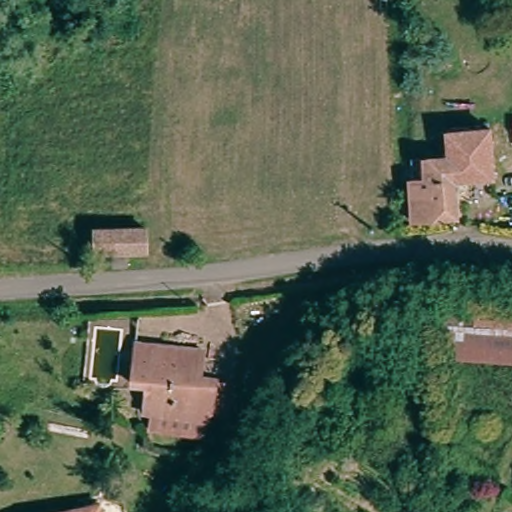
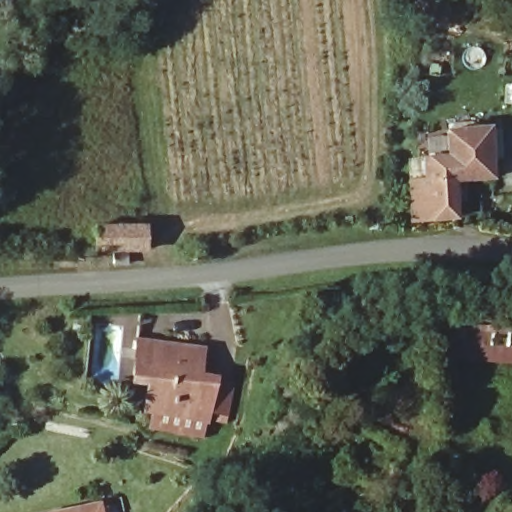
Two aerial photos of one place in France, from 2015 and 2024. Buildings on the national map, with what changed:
unchanged [(420,175),(419,153),(442,151),(440,125),(486,120),(489,175),(452,178),(453,216),(407,219),(403,175),(420,175)]
unchanged [(88,225),(142,222),(143,249),(88,250),(88,225)]
unchanged [(512,318),(512,341),(453,336),(454,315),(512,318)]
unchanged [(211,411),(148,403),(150,381),(131,377),(136,338),(203,345),(202,370),(215,372),(215,376),(211,411)]
unchanged [(49,512),(96,501),(98,512),(49,512)]

